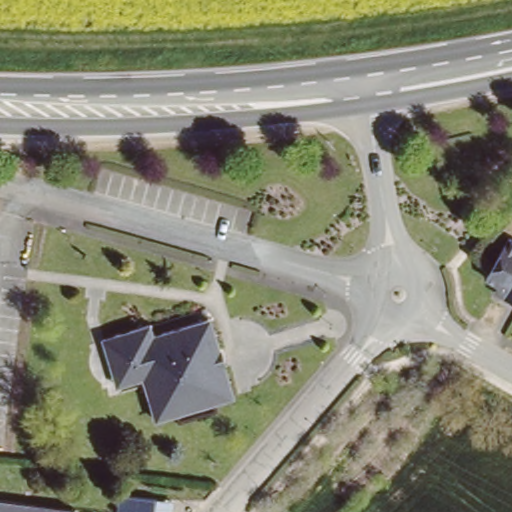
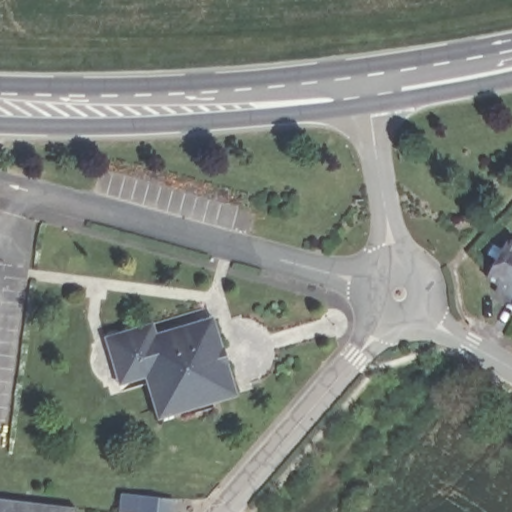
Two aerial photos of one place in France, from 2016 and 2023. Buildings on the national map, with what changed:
unchanged [(497,284),(502,277),(491,270),(495,263),(512,234),(512,293),(511,292),(497,284)]
unchanged [(149,322),(153,336),(206,319),(230,398),(156,421),(140,374),(117,382),(104,337),(149,322)]
unchanged [(160,499),(159,512),(123,512),(125,494),(160,499)]
unchanged [(72,506),(72,512),(0,512),(0,500),(72,506)]

